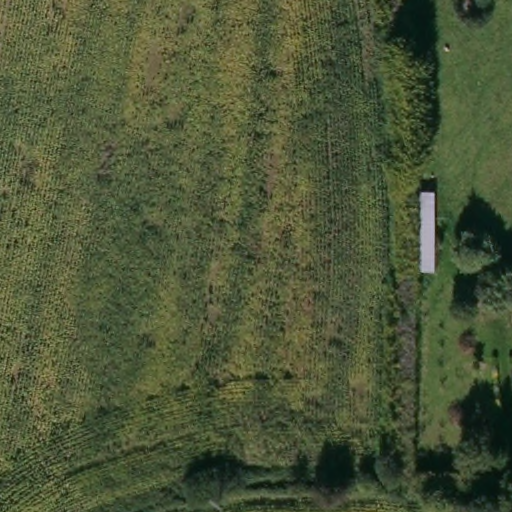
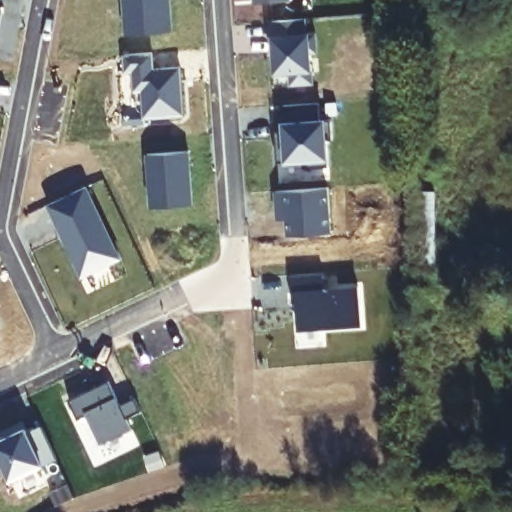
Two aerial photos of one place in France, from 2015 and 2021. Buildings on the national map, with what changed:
new [(170,32),(126,35),(124,0),(168,0),(170,32)]
new [(255,3),(255,0),(292,0),(255,3)]
new [(0,17),(0,12),(1,12),(0,17)]
new [(304,20),(305,35),(315,34),(315,53),(310,53),(311,84),(290,85),(290,73),(275,74),(271,22),(304,20)]
new [(151,53),(152,70),(180,68),(183,116),(143,119),(141,92),(133,92),(131,72),(124,73),(122,55),(151,53)]
new [(284,124),(282,107),(315,104),(316,122),(331,121),(332,141),(326,141),(328,168),(305,170),(304,162),(276,164),(275,139),(275,132),(283,132),(282,124),(284,124)]
new [(187,152),(191,206),(151,209),(147,155),(187,152)]
new [(84,187),(119,259),(83,276),(67,243),(65,244),(55,224),(60,223),(50,204),(84,187)]
new [(327,188),(330,234),(288,237),(286,209),(276,210),(275,192),(327,188)]
new [(322,274),(323,291),(348,289),(350,328),(297,332),(295,292),(290,293),(290,276),(322,274)]
new [(107,382),(119,406),(134,399),(140,413),(125,419),(131,430),(100,445),(86,416),(77,421),(67,401),(107,382)]
new [(1,432),(22,423),(27,434),(40,427),(59,466),(12,488),(0,462),(0,441),(5,439),(1,432)]

